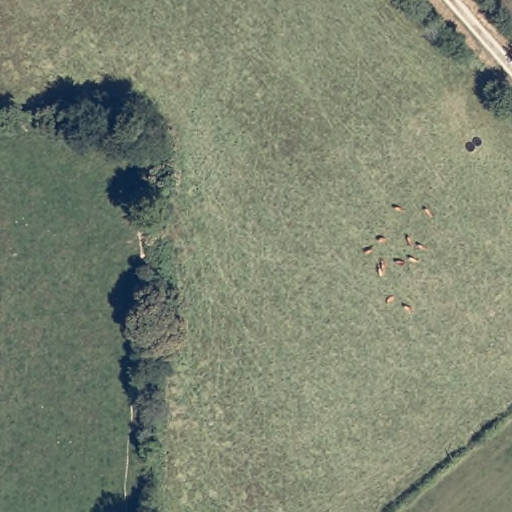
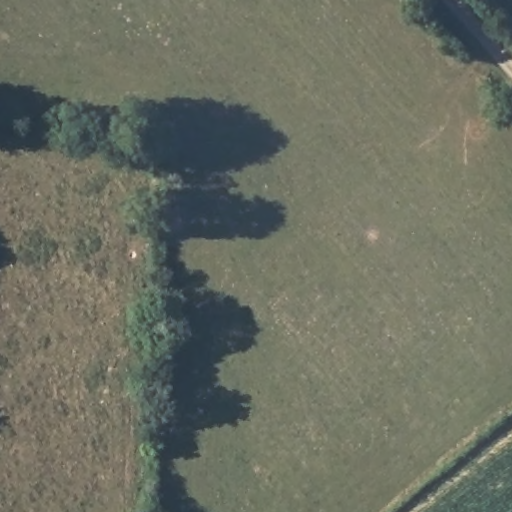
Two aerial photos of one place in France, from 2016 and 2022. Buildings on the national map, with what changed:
[]

